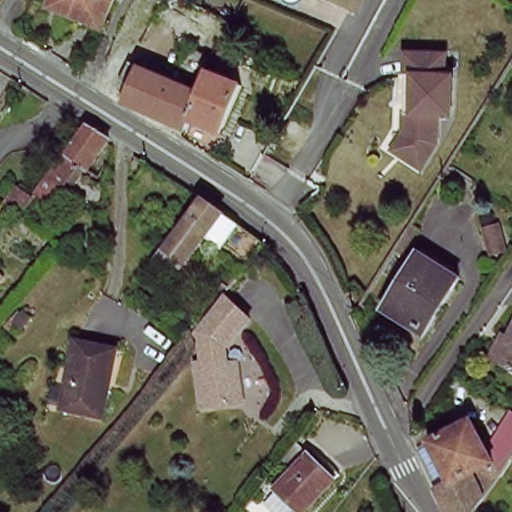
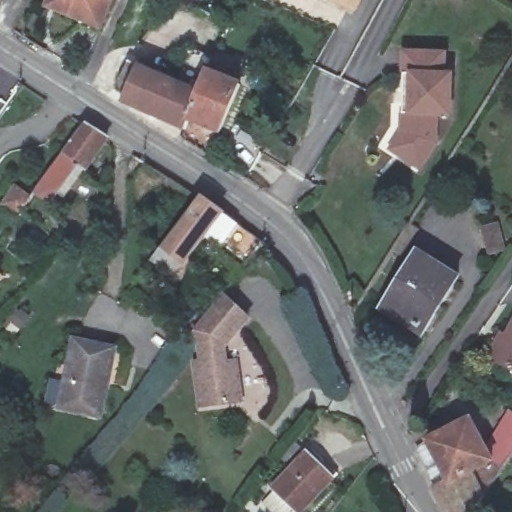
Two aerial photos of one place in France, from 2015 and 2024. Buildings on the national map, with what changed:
unchanged [(101,30),(50,9),(54,0),(114,0),(101,30)]
unchanged [(335,0),(365,0),(364,2),(360,11),(335,0)]
unchanged [(190,121),(211,74),(218,56),(220,53),(236,61),(228,81),(243,88),(221,136),(192,122),(190,121)]
unchanged [(190,121),(192,122),(188,132),(186,131),(130,104),(113,94),(103,87),(118,58),(128,61),(171,81),(181,60),(211,74),(190,121)]
unchanged [(404,144),(407,139),(410,58),(450,60),(450,82),(456,83),(456,121),(442,122),(441,149),(425,174),(409,164),(397,156),(404,144)]
unchanged [(110,139),(87,170),(78,164),(48,205),(33,195),(87,125),(110,139)]
unchanged [(31,198),(21,212),(10,211),(5,207),(18,188),(31,198)]
unchanged [(241,267),(220,244),(217,248),(202,236),(178,265),(158,248),(197,199),(219,215),(224,218),(235,226),(260,244),(241,267)]
unchanged [(457,281),(420,337),(383,311),(420,256),(457,281)]
unchanged [(223,367),(232,366),(238,406),(196,411),(190,368),(199,367),(195,339),(190,335),(218,299),(245,321),(221,350),(223,367)]
unchanged [(489,357),(501,334),(507,336),(512,327),(512,369),(489,357)]
unchanged [(93,419),(60,411),(76,344),(116,354),(108,386),(99,421),(93,419)]
unchanged [(441,512),(432,491),(445,485),(426,443),(469,423),(482,450),(499,425),(512,437),(512,454),(494,478),(478,502),(471,512),(441,512)]
unchanged [(298,512),(297,511),(296,512),(276,512),(267,503),(278,492),(275,489),(310,455),(335,482),(305,512),(298,512)]

